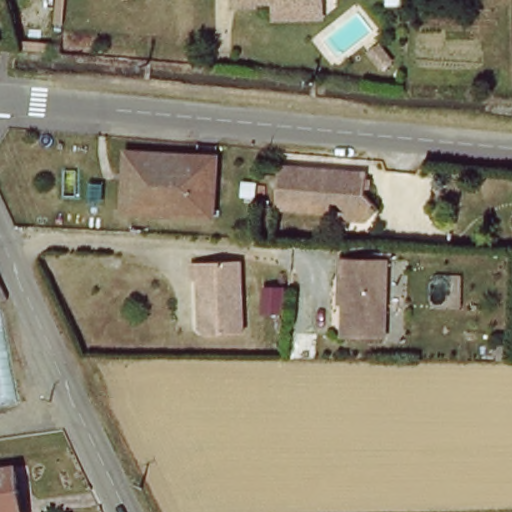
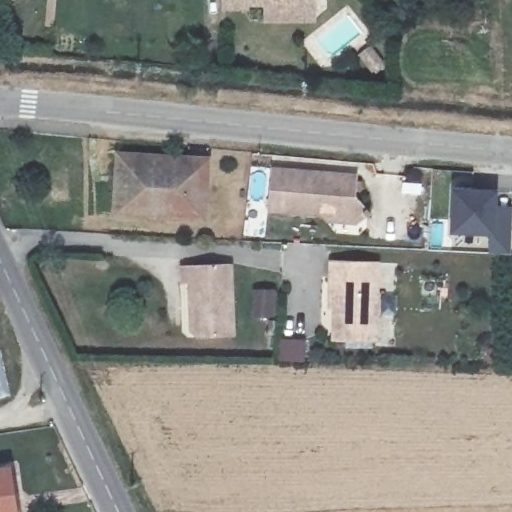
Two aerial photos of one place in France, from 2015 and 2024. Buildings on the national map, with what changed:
unchanged [(317,3),(251,2),(251,7),(229,7),(229,0),(318,0),(317,3)]
unchanged [(119,152),(210,159),(207,215),(117,210),(119,152)]
unchanged [(360,177),(358,197),(370,211),(372,215),(368,217),(365,214),(360,219),(342,217),(332,205),(325,205),(323,216),(270,212),(272,180),(273,171),(290,172),(332,175),(360,177)]
new [(502,189),(501,207),(512,208),(512,255),(490,255),(492,236),(453,235),(455,188),(502,189)]
unchanged [(378,337),(362,337),(337,336),(338,302),(333,302),(335,274),(335,258),(382,260),(378,337)]
unchanged [(193,281),(187,281),(186,262),(215,262),(234,261),(237,333),(201,335),(200,306),(194,306),(193,281)]
unchanged [(0,391),(0,360),(6,391),(0,391)]
unchanged [(14,512),(0,512),(0,474),(7,473),(14,512)]

